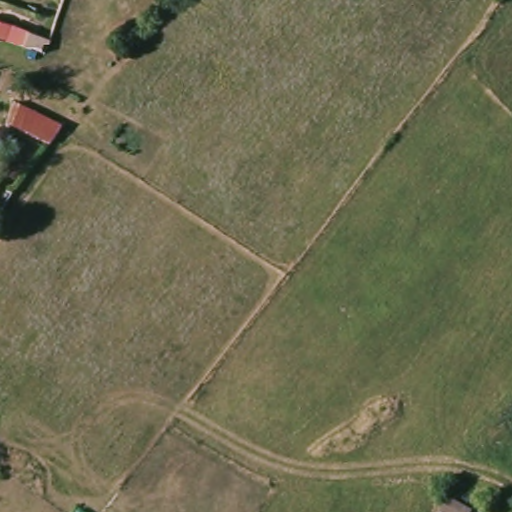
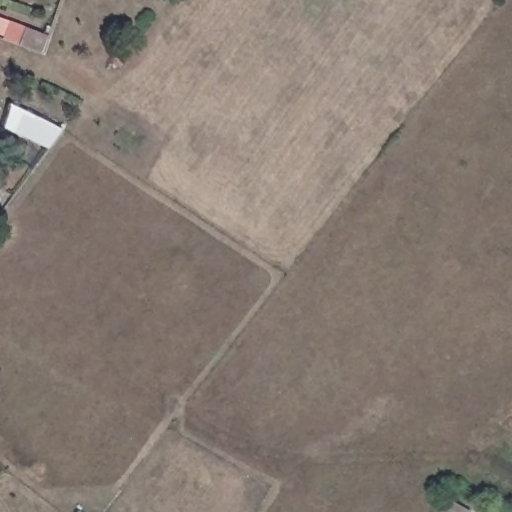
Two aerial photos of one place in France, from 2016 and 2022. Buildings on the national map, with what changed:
unchanged [(0,124),(0,103),(27,113),(41,118),(70,129),(54,149),(13,130),(0,124)]

